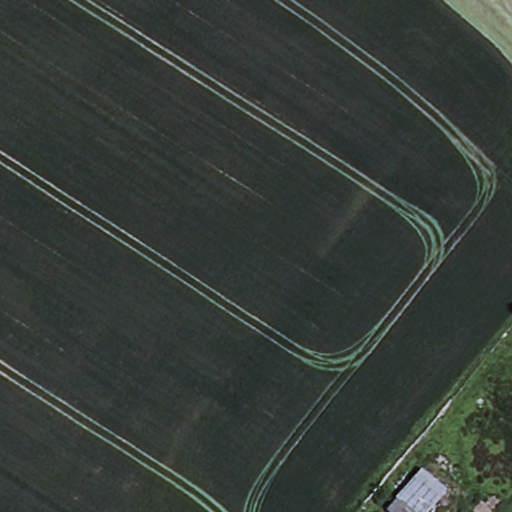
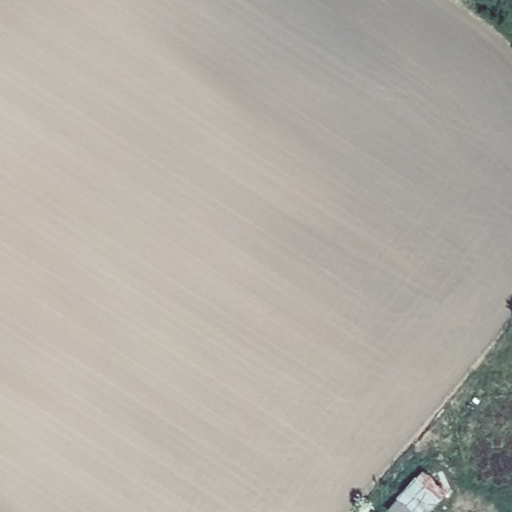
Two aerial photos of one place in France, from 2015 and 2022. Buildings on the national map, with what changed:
unchanged [(442,492),(424,512),(378,512),(417,465),(442,492)]

